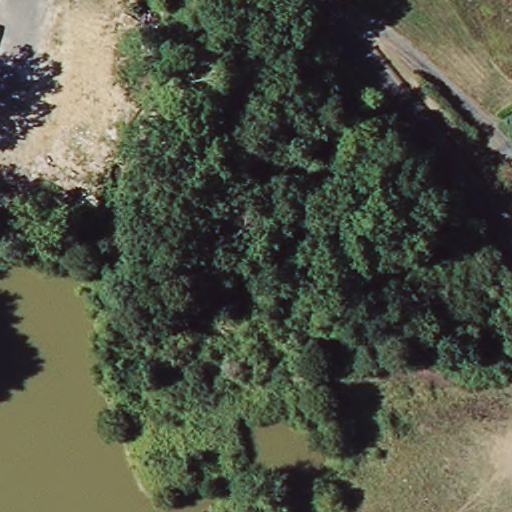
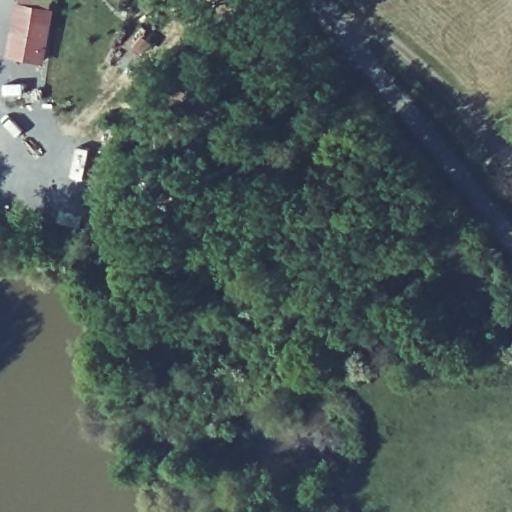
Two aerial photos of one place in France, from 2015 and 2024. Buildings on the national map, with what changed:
new [(50,8),(56,9),(46,62),(7,56),(17,1),(21,1),(21,0),(51,0),(50,8)]

